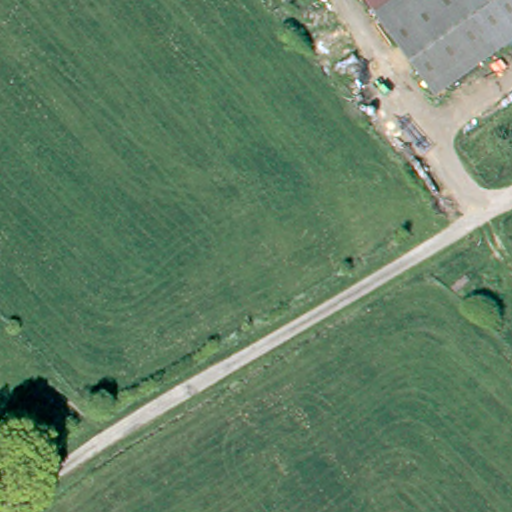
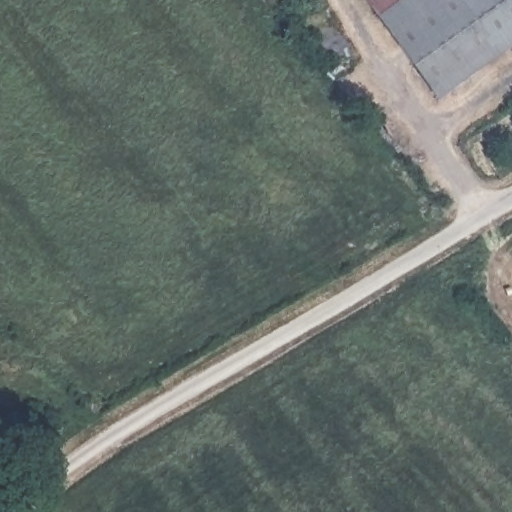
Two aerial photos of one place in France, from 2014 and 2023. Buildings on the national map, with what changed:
unchanged [(431,90),(367,0),(512,0),(512,32),(431,90)]

